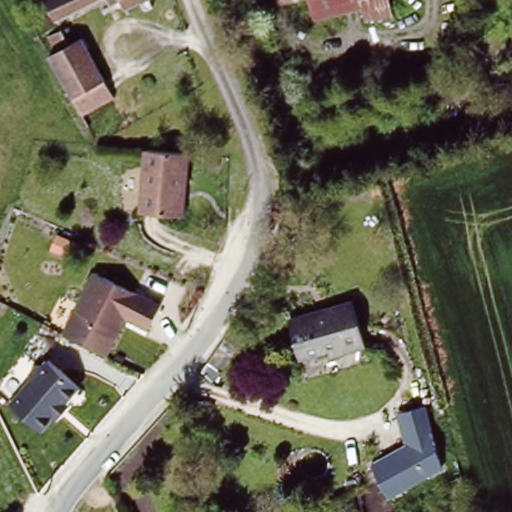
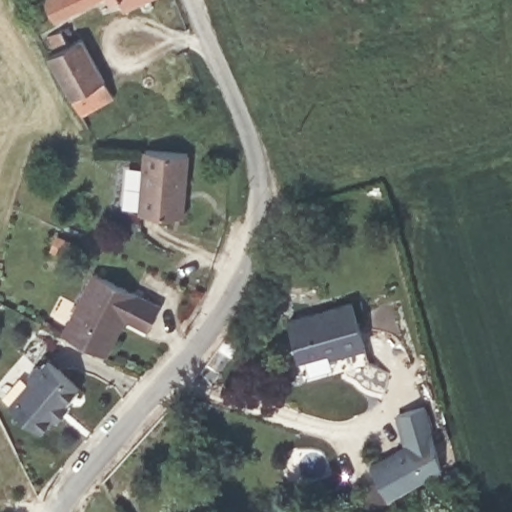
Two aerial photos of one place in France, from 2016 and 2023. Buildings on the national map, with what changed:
unchanged [(55,20),(46,0),(100,0),(55,20)]
unchanged [(144,11),(141,2),(124,10),(120,2),(109,6),(106,0),(151,0),(154,8),(144,11)]
demolished [(308,3),(269,9),(268,0),(386,0),(393,22),(363,30),(361,16),(313,23),(308,3)]
unchanged [(120,111),(89,129),(50,59),(56,56),(48,40),(63,34),(70,49),(82,42),(120,111)]
unchanged [(191,160),(184,221),(140,217),(145,173),(147,155),(177,158),(191,160)]
unchanged [(94,278),(159,312),(148,335),(124,323),(105,358),(62,336),(94,278)]
unchanged [(354,303),(363,342),(329,350),(328,343),(299,350),(292,318),(354,303)]
unchanged [(51,418),(38,432),(8,406),(30,381),(30,372),(37,365),(44,365),(48,360),(79,387),(65,403),(70,407),(57,422),(51,418)]
unchanged [(426,407),(444,469),(390,498),(371,465),(406,445),(397,415),(426,407)]

